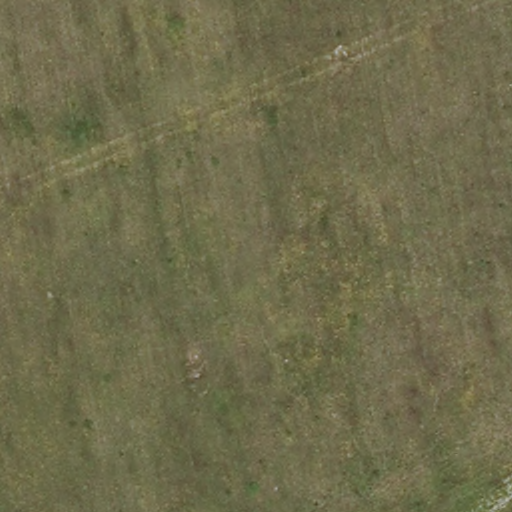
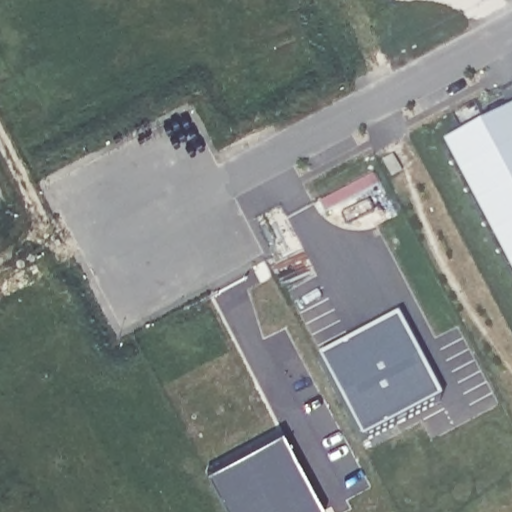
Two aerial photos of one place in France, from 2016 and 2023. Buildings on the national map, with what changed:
new [(444,146),(512,108),(512,277),(444,146)]
new [(361,445),(316,361),(397,317),(443,401),(361,445)]
new [(325,510),(322,512),(228,512),(206,470),(282,430),(325,510)]

